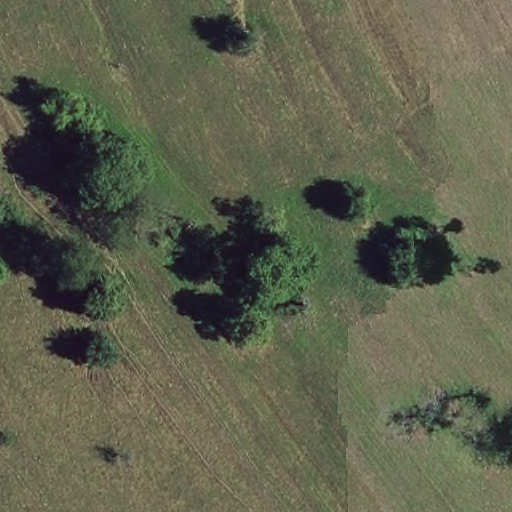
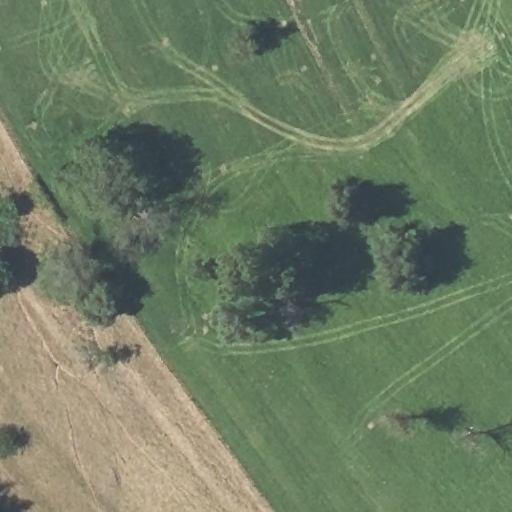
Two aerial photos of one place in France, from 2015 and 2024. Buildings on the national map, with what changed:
[]

